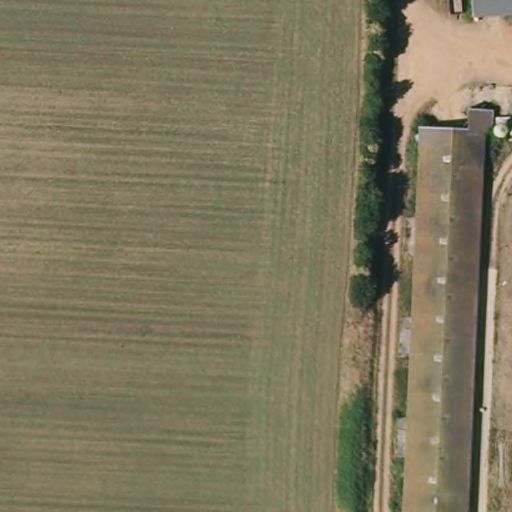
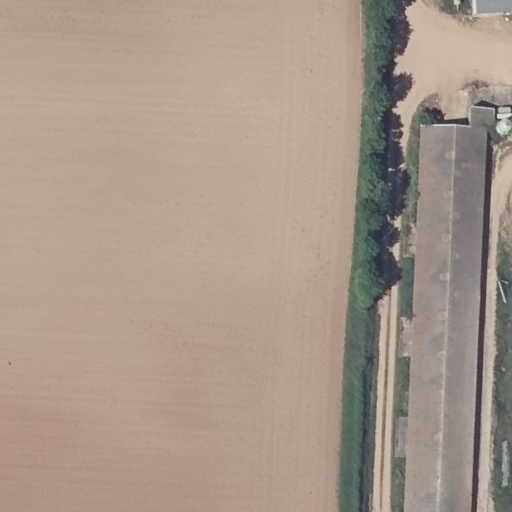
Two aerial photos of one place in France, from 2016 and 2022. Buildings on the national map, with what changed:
unchanged [(481,12),(480,0),(512,0),(512,11),(481,12)]
unchanged [(468,129),(470,109),(497,110),(496,130),(486,131),(468,512),(406,512),(425,127),(468,129)]

